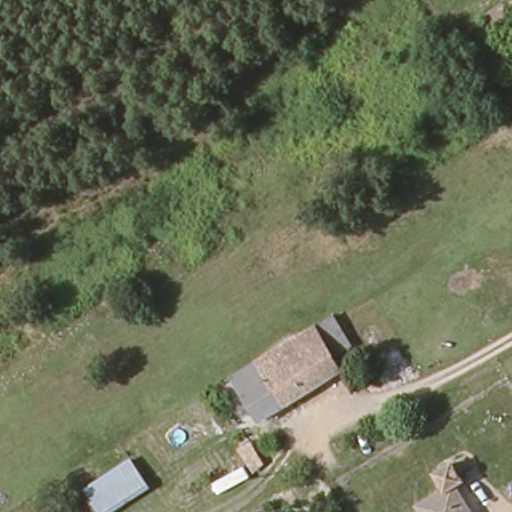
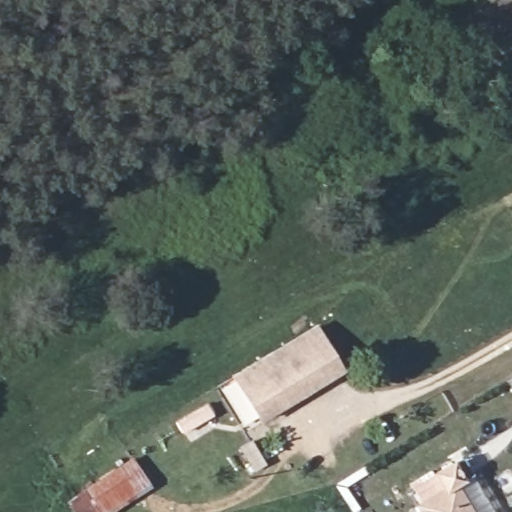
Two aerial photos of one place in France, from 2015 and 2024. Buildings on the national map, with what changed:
unchanged [(322,318),(347,360),(330,371),(303,330),(322,318)]
unchanged [(330,371),(267,410),(242,369),(303,330),(330,371)]
unchanged [(263,466),(256,471),(241,450),(250,444),(263,466)]
unchanged [(67,497),(84,486),(132,455),(151,488),(112,512),(75,512),(67,497)]
unchanged [(414,506),(442,489),(432,472),(448,463),(456,482),(451,484),(467,512),(418,512),(414,506)]

